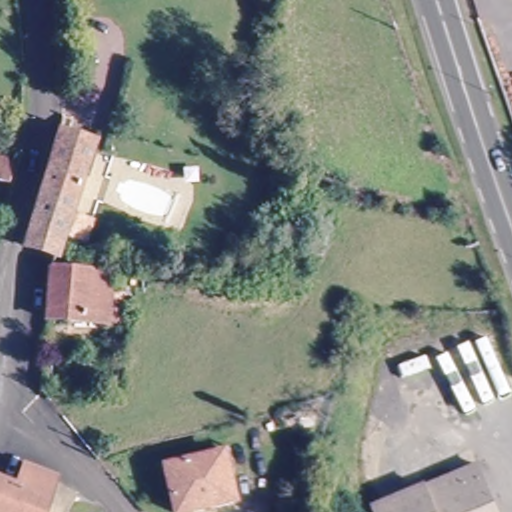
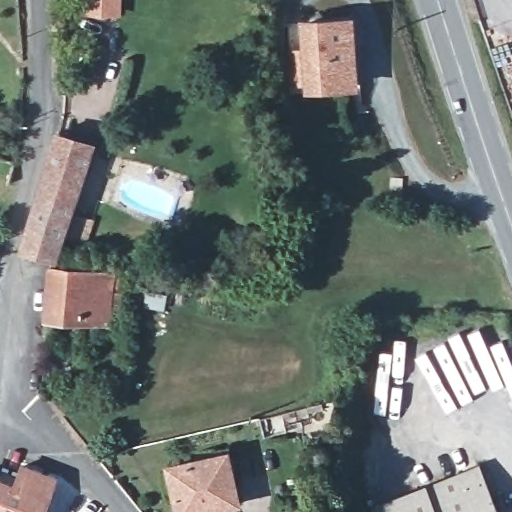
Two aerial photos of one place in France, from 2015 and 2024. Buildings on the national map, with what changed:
unchanged [(114,0),(114,24),(83,23),(83,0),(114,0)]
new [(354,16),(359,90),(305,95),(299,21),(354,16)]
unchanged [(91,155),(62,249),(72,252),(66,272),(47,271),(51,257),(22,247),(34,206),(47,166),(56,143),(91,155)]
demolished [(0,182),(0,158),(15,163),(11,185),(0,182)]
demolished [(309,225),(328,230),(320,257),(302,250),(309,225)]
unchanged [(119,289),(109,288),(107,323),(45,320),(47,271),(66,272),(76,272),(120,274),(119,289)]
unchanged [(167,472),(230,456),(242,503),(206,512),(178,512),(167,472)]
unchanged [(13,483),(18,462),(35,468),(50,475),(39,512),(0,512),(0,478),(13,483)]
unchanged [(475,469),(495,512),(380,512),(475,469)]

